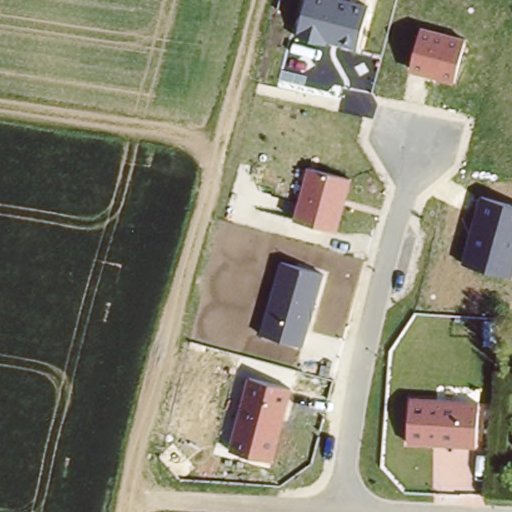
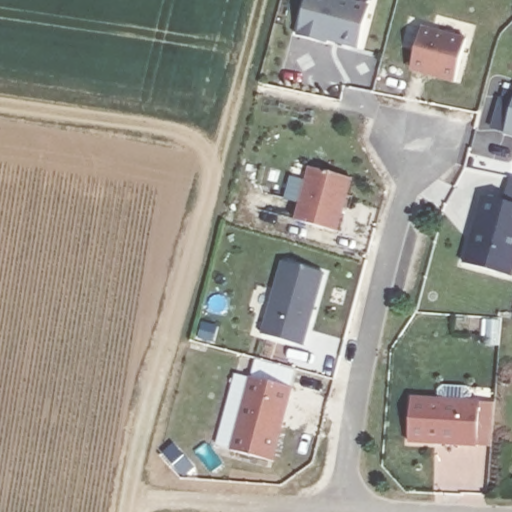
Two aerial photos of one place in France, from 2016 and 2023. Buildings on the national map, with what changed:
unchanged [(358,49),(329,41),(327,45),(296,37),(306,0),(353,0),(369,4),(358,49)]
unchanged [(454,83),(409,71),(421,26),(464,37),(454,83)]
new [(512,103),(512,137),(502,134),(512,103)]
unchanged [(352,179),(338,232),(293,220),(306,167),(352,179)]
unchanged [(512,204),(512,277),(462,264),(479,195),(512,204)]
unchanged [(324,273),(304,348),(260,334),(279,262),(324,273)]
unchanged [(294,388),(274,462),(228,450),(246,377),(294,388)]
unchanged [(410,398),(479,400),(478,446),(407,444),(410,398)]

